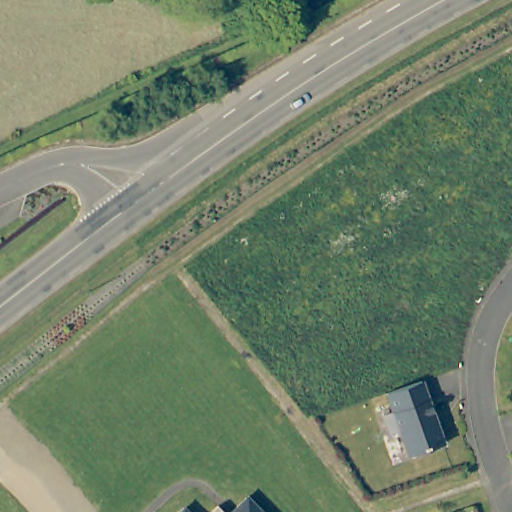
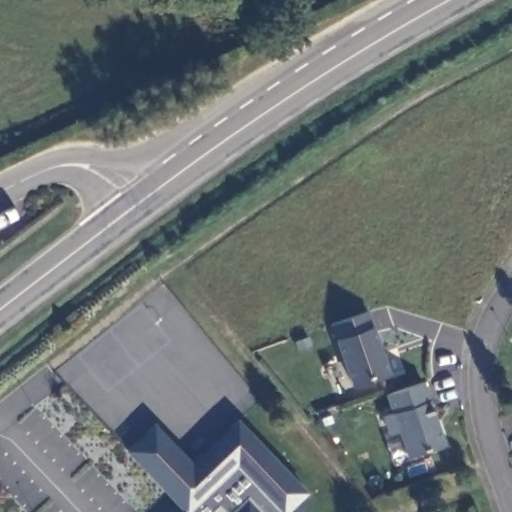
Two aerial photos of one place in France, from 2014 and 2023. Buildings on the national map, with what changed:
new [(330,325),(368,311),(388,372),(352,386),(330,325)]
unchanged [(417,378),(440,441),(404,453),(395,427),(385,430),(380,412),(389,409),(382,390),(417,378)]
new [(235,497),(220,512),(211,512),(206,507),(201,512),(178,512),(181,509),(127,453),(155,423),(192,463),(237,420),(308,493),(288,512),(250,512),(235,497)]
unchanged [(235,497),(250,512),(220,512),(235,497)]
unchanged [(206,507),(211,512),(201,512),(206,507)]
unchanged [(172,508),(175,512),(168,512),(172,508)]

